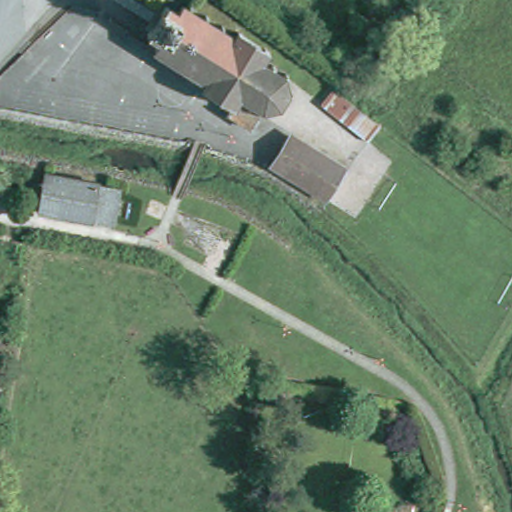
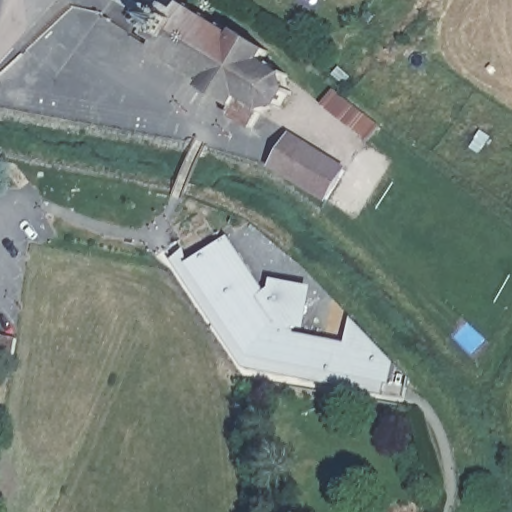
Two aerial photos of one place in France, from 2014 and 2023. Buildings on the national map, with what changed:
unchanged [(225,0),(240,0),(235,8),(225,0)]
unchanged [(159,53),(163,46),(151,37),(169,9),(182,16),(187,9),(238,41),(242,35),(273,56),(266,66),(289,81),(291,96),(282,109),(266,113),(255,131),(231,116),(234,110),(206,92),(209,86),(159,53)]
unchanged [(332,88),(379,126),(366,139),(320,102),(332,88)]
unchanged [(330,201),(280,161),(300,135),(350,176),(330,201)]
demolished [(54,178),(127,192),(121,228),(48,214),(54,178)]
new [(185,262),(226,233),(263,288),(275,280),(295,283),(306,293),(302,322),(291,328),(295,334),(345,342),(350,316),(396,364),(390,384),(383,381),(381,392),(243,366),(169,257),(183,247),(185,262)]
unchanged [(19,341),(17,356),(0,353),(0,337),(19,341)]

